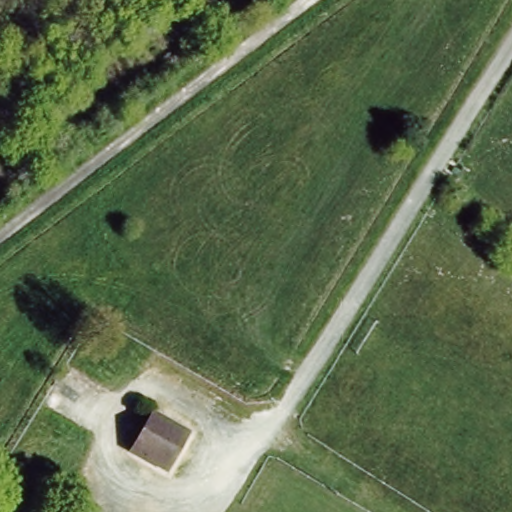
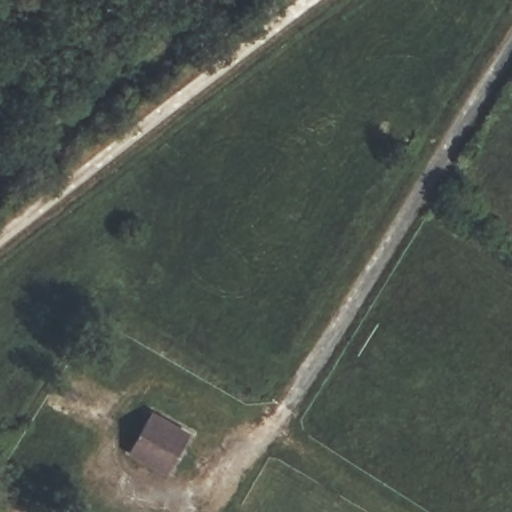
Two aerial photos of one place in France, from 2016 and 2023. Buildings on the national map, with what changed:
unchanged [(167,473),(127,448),(152,407),(192,430),(167,473)]

